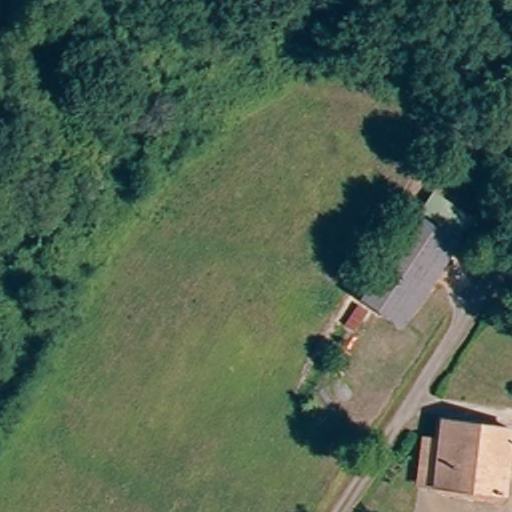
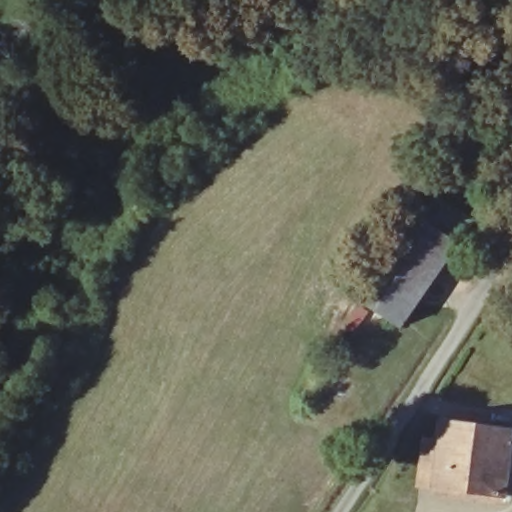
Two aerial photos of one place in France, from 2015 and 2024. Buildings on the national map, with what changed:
unchanged [(422,217),(455,240),(414,300),(396,326),(362,302),(370,290),(422,217)]
unchanged [(511,425),(504,498),(425,486),(437,417),(511,425)]

